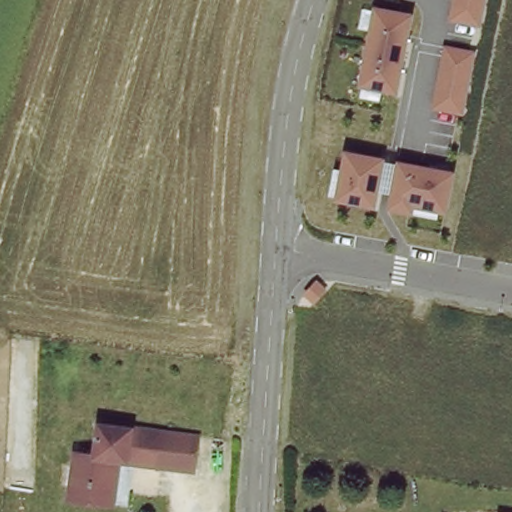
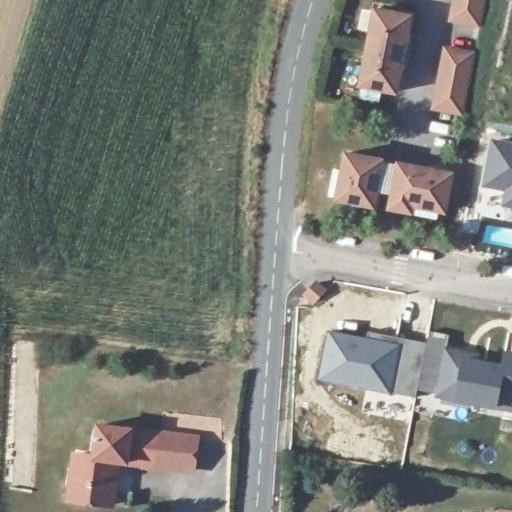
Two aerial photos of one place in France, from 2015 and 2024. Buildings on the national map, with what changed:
unchanged [(453,0),(488,0),(481,29),(449,22),(453,0)]
unchanged [(373,6),(414,14),(397,95),(359,89),(373,6)]
unchanged [(446,46),(478,52),(464,115),(433,110),(446,46)]
new [(504,202),(507,190),(485,186),(494,142),(512,146),(512,205),(504,202)]
unchanged [(343,150),(457,174),(447,215),(414,209),(413,215),(388,211),(391,195),(378,192),(374,209),(335,202),(343,150)]
new [(363,344),(365,337),(423,346),(415,402),(316,387),(322,338),(363,344)]
new [(499,365),(504,350),(512,352),(512,413),(495,409),(453,399),(434,395),(444,348),(461,355),(499,365)]
unchanged [(74,507),(75,489),(76,461),(94,462),(95,429),(154,430),(194,431),(193,464),(153,463),(118,462),(118,490),(117,507),(74,507)]

